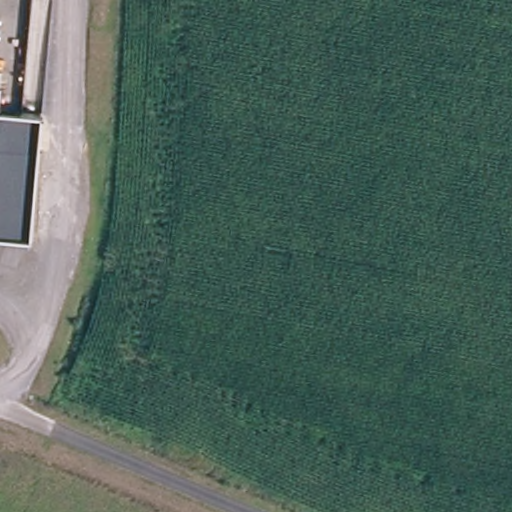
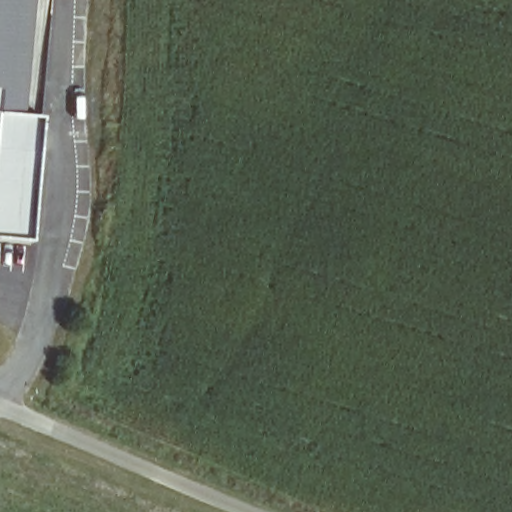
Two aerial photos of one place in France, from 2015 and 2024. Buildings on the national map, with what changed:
new [(22,110),(0,109),(0,94),(1,84),(0,84),(0,0),(32,0),(22,110)]
unchanged [(1,84),(0,94),(0,84),(1,84)]
unchanged [(31,237),(0,234),(0,109),(43,112),(31,237)]

